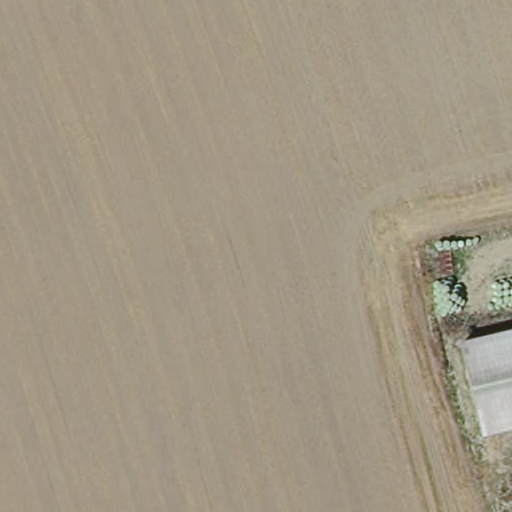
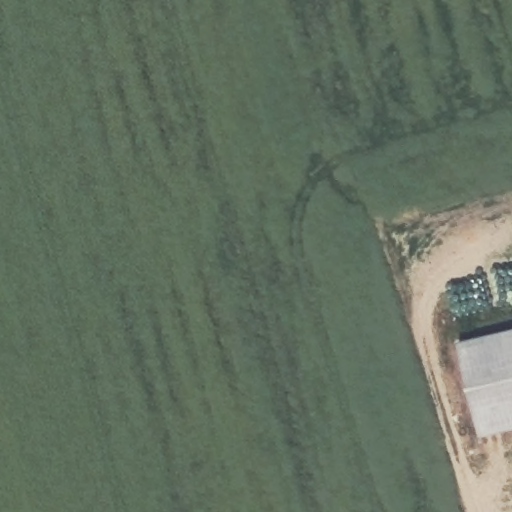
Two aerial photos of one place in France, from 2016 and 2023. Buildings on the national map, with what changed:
unchanged [(460,343),(512,331),(512,434),(483,442),(460,343)]

